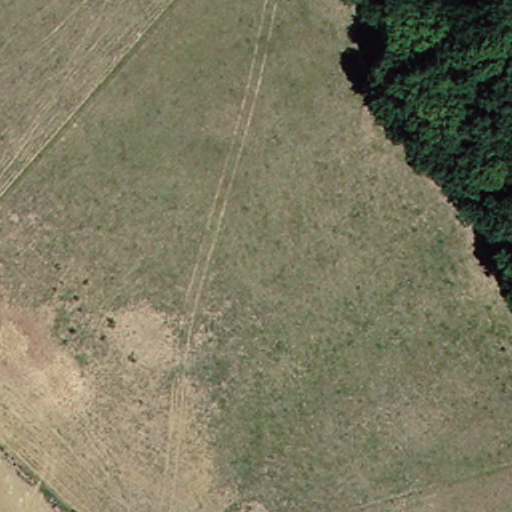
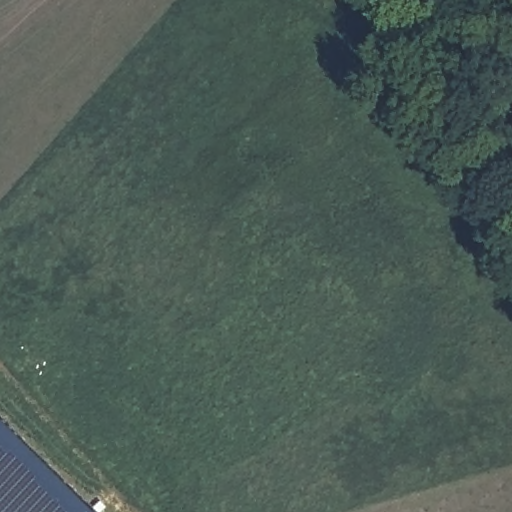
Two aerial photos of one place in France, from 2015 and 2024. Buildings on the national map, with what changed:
new [(97,512),(0,512),(0,416),(97,512)]

